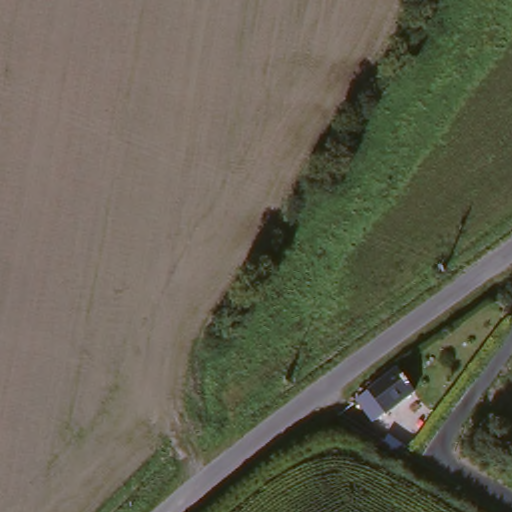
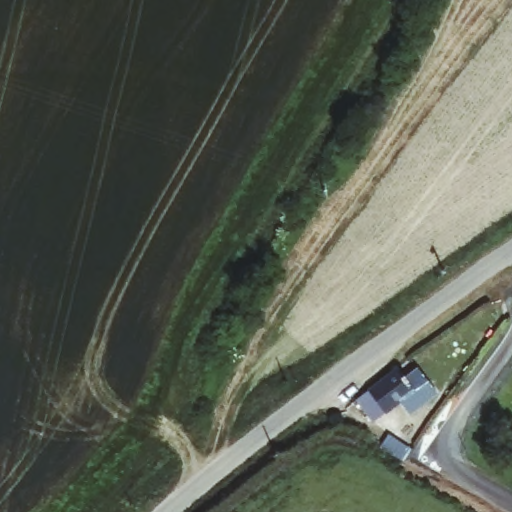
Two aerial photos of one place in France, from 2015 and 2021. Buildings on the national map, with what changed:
unchanged [(402,362),(420,384),(378,417),(357,393),(402,362)]

